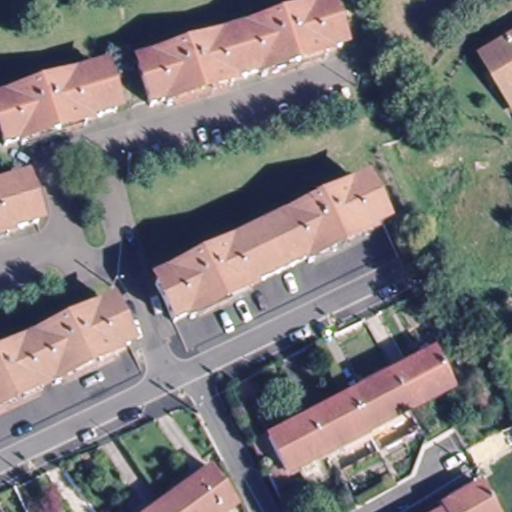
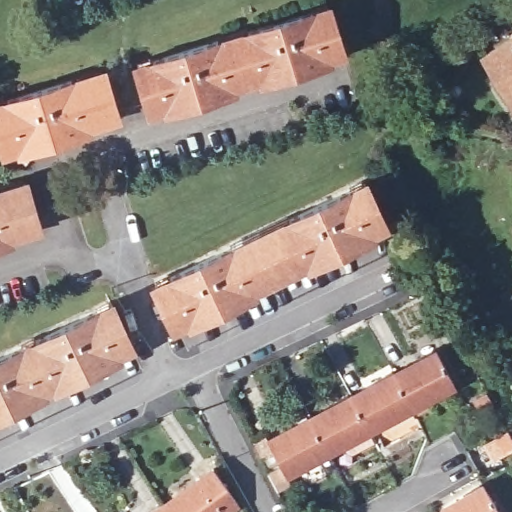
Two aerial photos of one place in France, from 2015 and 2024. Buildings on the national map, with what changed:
unchanged [(326,58),(329,64),(265,83),(263,79),(231,88),(233,92),(171,112),(170,107),(152,112),(138,66),(329,11),(341,52),(326,58)]
unchanged [(478,62),(512,41),(512,117),(511,117),(503,104),(478,62)]
unchanged [(91,125),(92,130),(29,150),(28,146),(8,152),(0,118),(0,110),(107,80),(117,117),(91,125)]
unchanged [(26,184),(39,227),(8,236),(6,231),(0,233),(0,192),(26,184)]
unchanged [(159,282),(365,185),(382,222),(367,229),(369,234),(310,262),(307,257),(248,286),(250,291),(193,318),(191,313),(176,320),(159,282)]
unchanged [(110,356),(112,361),(56,387),(54,382),(38,391),(40,395),(0,414),(0,361),(107,310),(126,348),(110,356)]
unchanged [(270,444),(435,357),(452,390),(287,476),(270,444)]
unchanged [(207,471),(232,502),(229,504),(234,512),(151,512),(207,471)]
unchanged [(471,497),(481,512),(447,512),(471,497)]

